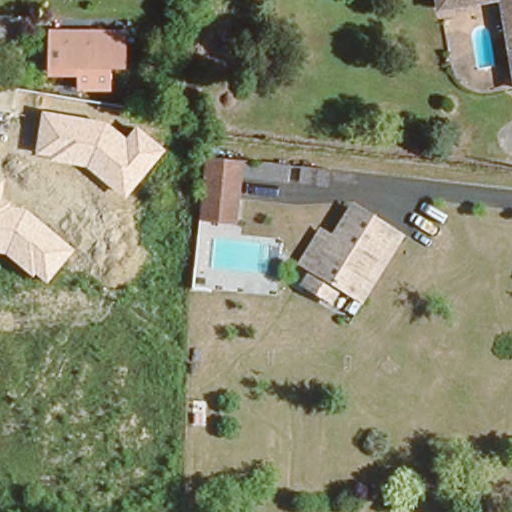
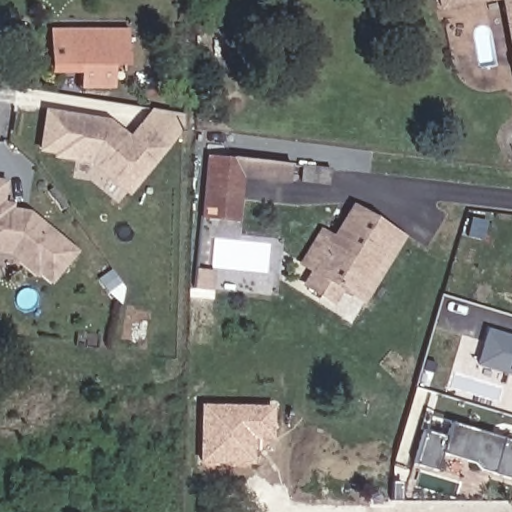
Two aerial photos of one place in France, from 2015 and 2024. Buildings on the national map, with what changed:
unchanged [(512,0),(512,71),(502,0),(512,0)]
unchanged [(128,66),(60,64),(61,31),(130,33),(128,66)]
unchanged [(36,152),(43,109),(107,119),(127,135),(137,123),(167,147),(126,195),(88,164),(52,158),(52,153),(36,152)]
unchanged [(288,158),(286,175),(243,169),(237,217),(199,213),(204,147),(288,158)]
unchanged [(327,179),(297,176),(298,161),(328,164),(327,179)]
unchanged [(5,181),(1,202),(11,203),(10,208),(29,212),(75,252),(49,285),(36,275),(34,277),(7,255),(0,254),(0,180),(5,181)]
unchanged [(356,284),(345,277),(331,297),(304,280),(314,264),(301,256),(320,225),(333,233),(353,202),(392,227),(401,232),(365,290),(356,284)]
new [(474,366),(485,328),(512,337),(512,376),(510,376),(474,366)]
new [(270,440),(253,438),(252,464),(198,463),(200,405),(273,406),(270,440)]
new [(413,463),(423,431),(445,437),(450,422),(512,442),(512,478),(439,454),(434,470),(413,463)]

